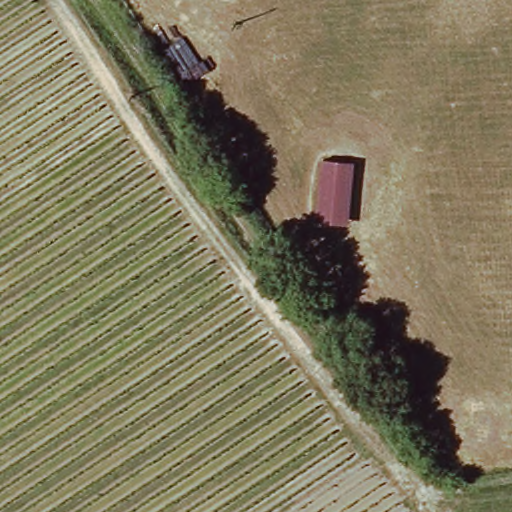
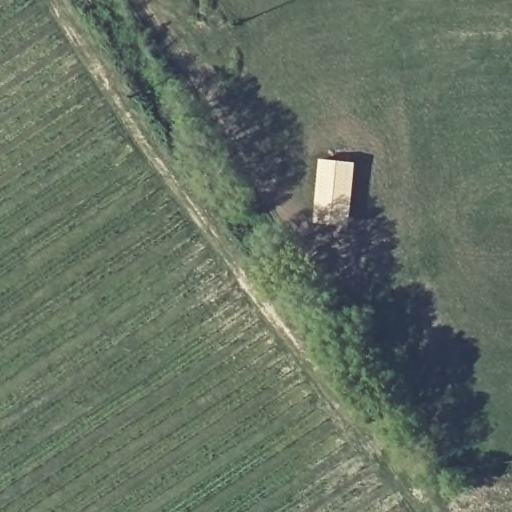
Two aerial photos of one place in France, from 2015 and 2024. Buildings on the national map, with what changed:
unchanged [(354,159),(349,225),(312,221),(318,156),(354,159)]

